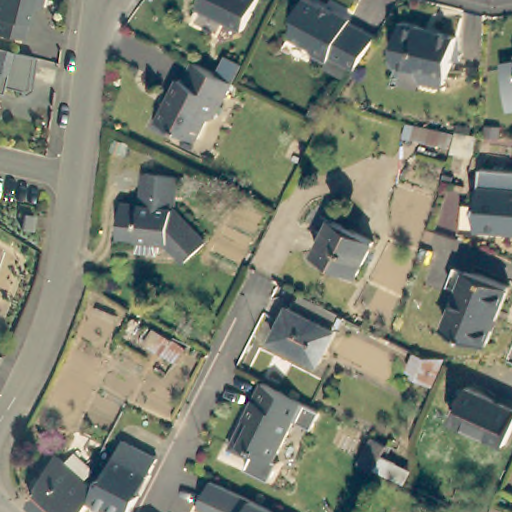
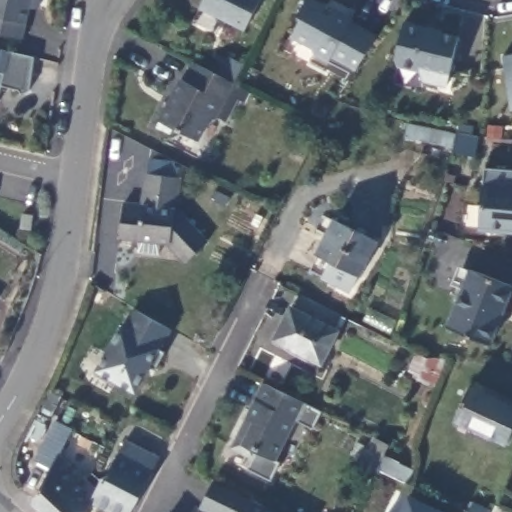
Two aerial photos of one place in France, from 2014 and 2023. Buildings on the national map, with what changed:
unchanged [(36,9),(34,10),(31,10),(29,9),(21,40),(0,35),(0,0),(41,0),(39,7),(36,9)]
unchanged [(197,3),(199,0),(255,0),(241,25),(197,3)]
unchanged [(350,17),(348,20),(374,35),(351,69),(328,55),(325,60),(310,52),(306,43),(290,34),(297,20),(295,11),(302,0),(314,0),(331,10),(332,8),(350,17)]
unchanged [(429,32),(440,36),(445,34),(460,38),(461,59),(452,65),(448,84),(440,81),(439,85),(423,80),(420,70),(401,66),(397,57),(406,21),(428,27),(429,32)]
unchanged [(25,96),(21,90),(5,86),(4,95),(0,94),(0,49),(34,58),(39,59),(31,91),(25,96)]
unchanged [(209,117),(197,138),(187,132),(177,136),(157,125),(182,77),(186,79),(195,60),(234,80),(215,116),(209,117)]
unchanged [(503,66),(512,65),(512,104),(509,102),(503,66)]
unchanged [(477,150),(468,150),(452,149),(460,130),(470,131),(478,131),(477,150)]
unchanged [(512,225),(508,225),(507,229),(479,226),(485,165),(512,167),(512,225)]
unchanged [(175,206),(206,239),(187,256),(170,240),(159,238),(155,252),(136,247),(139,234),(119,230),(125,198),(144,202),(150,169),(160,171),(180,176),(175,206)]
unchanged [(34,211),(31,225),(21,224),(24,210),(34,211)]
unchanged [(375,236),(357,271),(317,251),(335,217),(375,236)]
unchanged [(509,284),(486,341),(445,323),(468,266),(509,284)]
unchanged [(332,328),(315,362),(270,340),(286,306),(332,328)]
new [(117,325),(121,326),(131,307),(166,326),(155,345),(162,348),(152,367),(145,363),(132,388),(113,378),(111,382),(91,372),(117,325)]
unchanged [(290,420),(269,460),(250,448),(245,456),(224,445),(231,430),(242,426),(245,420),(239,416),(256,381),(306,405),(297,423),(290,420)]
unchanged [(512,422),(503,442),(452,418),(467,385),(512,406),(512,422)]
unchanged [(385,445),(373,468),(372,471),(357,465),(371,437),(385,445)]
unchanged [(94,488),(100,475),(101,476),(118,440),(152,456),(144,472),(145,473),(134,495),(137,495),(129,512),(109,512),(88,500),(94,488)]
unchanged [(88,500),(82,512),(42,512),(30,501),(55,453),(64,461),(70,450),(89,467),(82,478),(94,488),(88,500)]
unchanged [(253,501),(274,512),(206,512),(195,506),(209,480),(253,501)]
unchanged [(493,503),(507,509),(505,512),(488,512),(493,503)]

